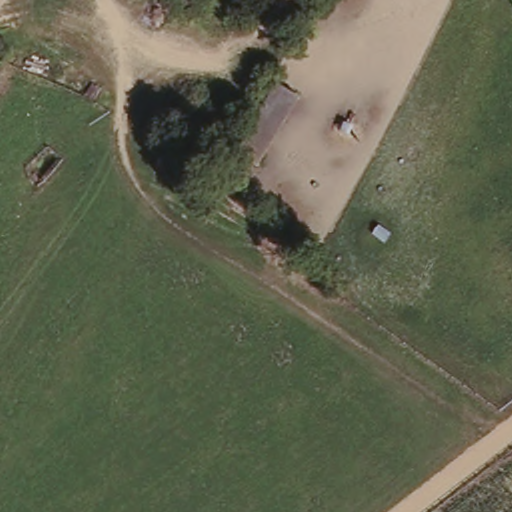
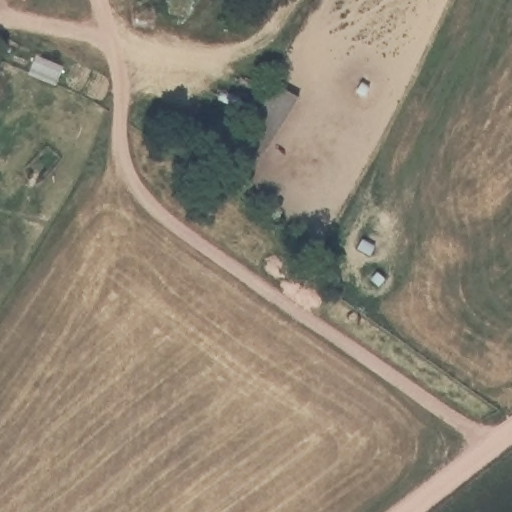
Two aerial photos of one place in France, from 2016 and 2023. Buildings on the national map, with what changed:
unchanged [(255,168),(233,154),(273,82),(296,96),(255,168)]

